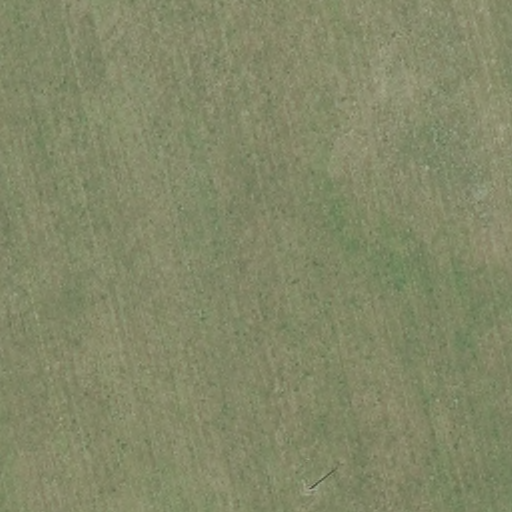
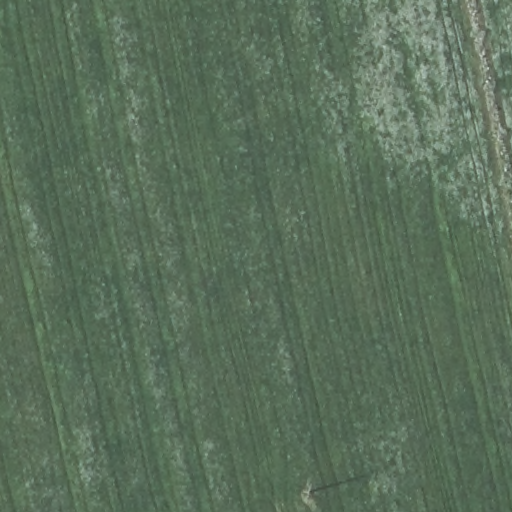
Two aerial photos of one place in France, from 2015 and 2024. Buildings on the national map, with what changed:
[]

